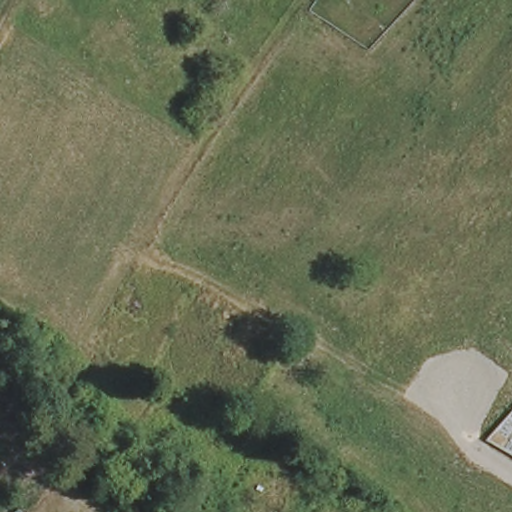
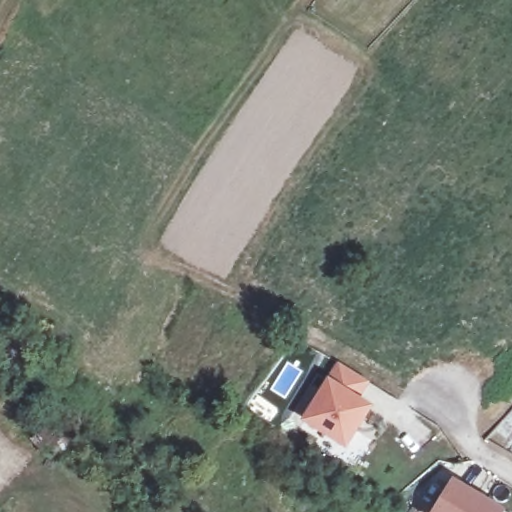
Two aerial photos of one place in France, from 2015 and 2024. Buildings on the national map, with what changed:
new [(358,396),(373,405),(347,449),(302,420),(329,377),(337,361),(370,382),(358,396)]
new [(504,512),(432,512),(453,477),(505,510),(504,512)]

